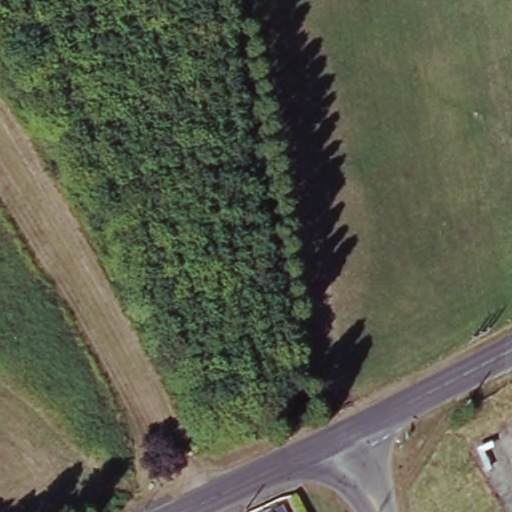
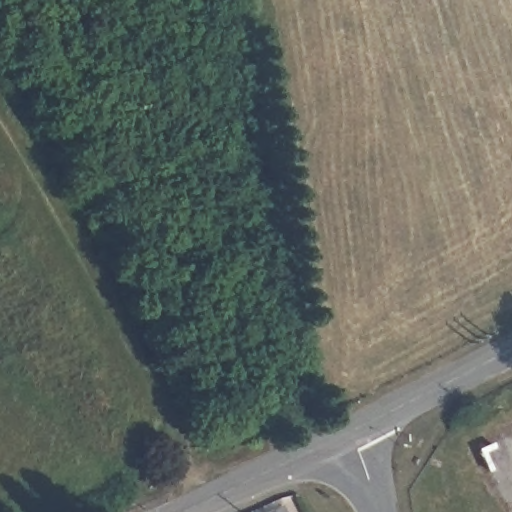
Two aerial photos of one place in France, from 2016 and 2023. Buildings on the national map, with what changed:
unchanged [(284,512),(274,512),(282,508),(284,512)]

